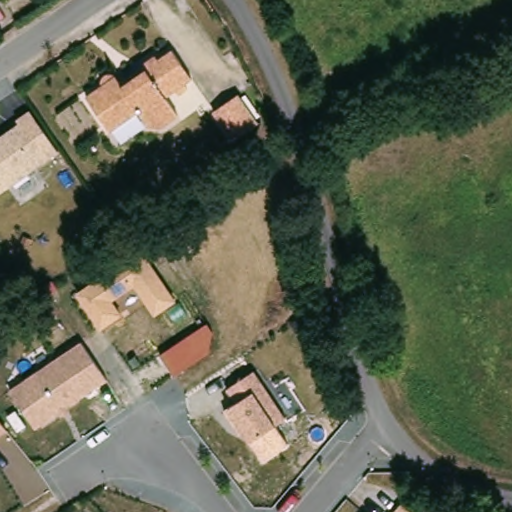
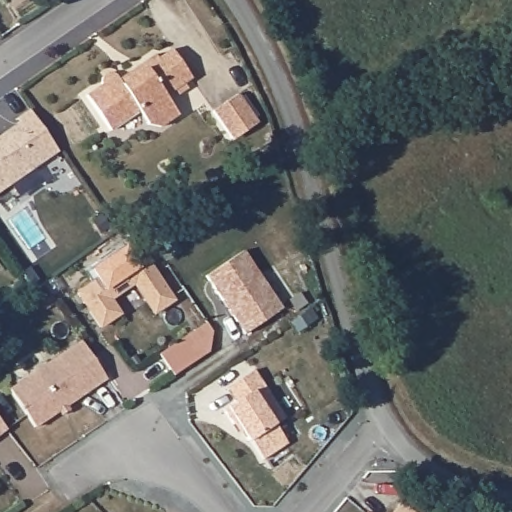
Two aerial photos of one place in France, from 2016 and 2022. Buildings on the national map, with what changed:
unchanged [(101,84),(101,83),(100,83),(100,82),(100,81),(100,80),(100,79),(100,78),(100,77),(101,77),(101,76),(101,75),(102,75),(102,74),(103,74),(103,73),(104,73),(105,73),(105,72),(106,72),(107,72),(108,72),(109,72),(110,72),(111,73),(112,73),(113,74),(114,74),(114,75),(118,80),(129,73),(154,55),(157,59),(171,49),(191,78),(184,83),(187,88),(178,95),(174,90),(165,96),(177,115),(160,127),(147,124),(138,111),(110,131),(85,95),(101,84)]
unchanged [(237,94),(257,123),(232,140),(212,111),(237,94)]
unchanged [(20,127),(46,164),(0,196),(0,141),(20,127)]
new [(243,251),(282,309),(245,334),(206,276),(243,251)]
unchanged [(76,293),(142,252),(176,301),(153,316),(134,286),(112,301),(122,315),(100,329),(76,293)]
unchanged [(206,322),(213,334),(210,352),(173,377),(159,354),(206,322)]
unchanged [(109,377),(38,428),(10,389),(82,338),(109,377)]
unchanged [(231,402),(220,387),(253,368),(285,417),(274,425),(248,439),(226,408),(231,402)]
unchanged [(6,428),(0,433),(0,420),(6,428)]
unchanged [(401,498),(417,512),(390,512),(401,498)]
unchanged [(372,512),(367,512),(369,509),(372,512)]

